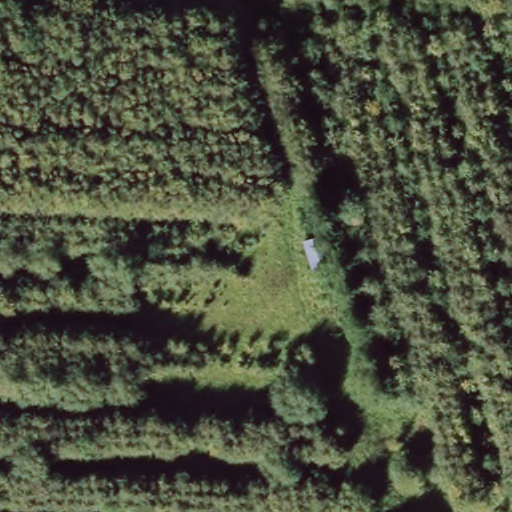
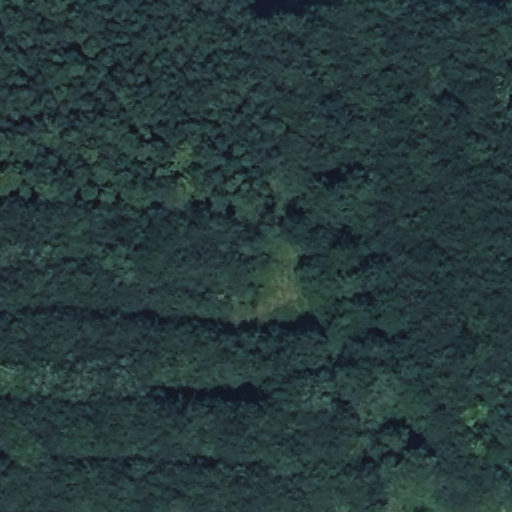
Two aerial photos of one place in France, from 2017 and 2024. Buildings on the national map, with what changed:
unchanged [(317,232),(326,260),(306,266),(297,238),(317,232)]

